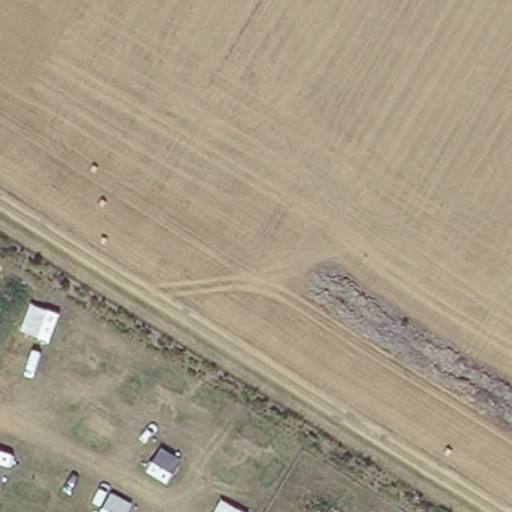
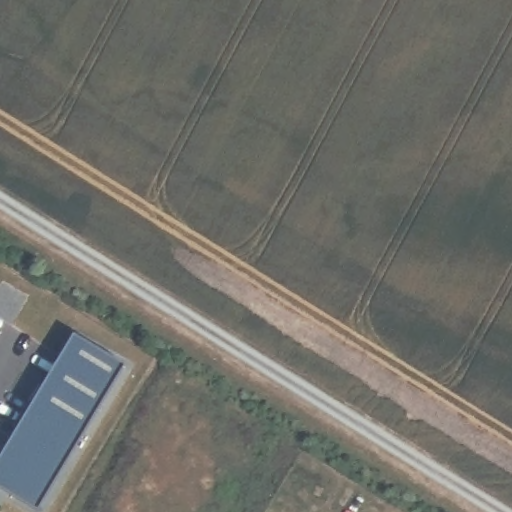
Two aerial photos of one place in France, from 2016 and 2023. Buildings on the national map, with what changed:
new [(0,460),(75,335),(127,366),(40,512),(39,512),(0,489),(0,460)]

